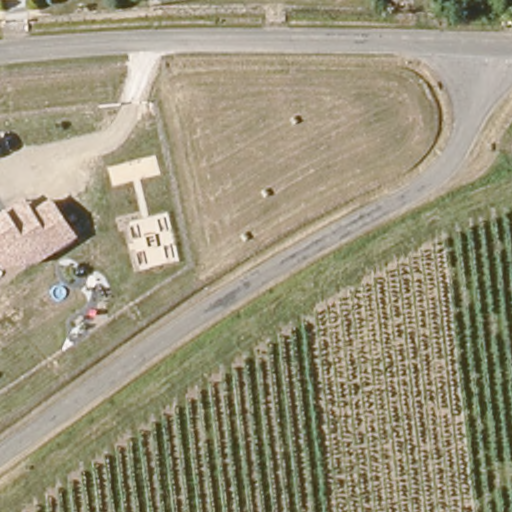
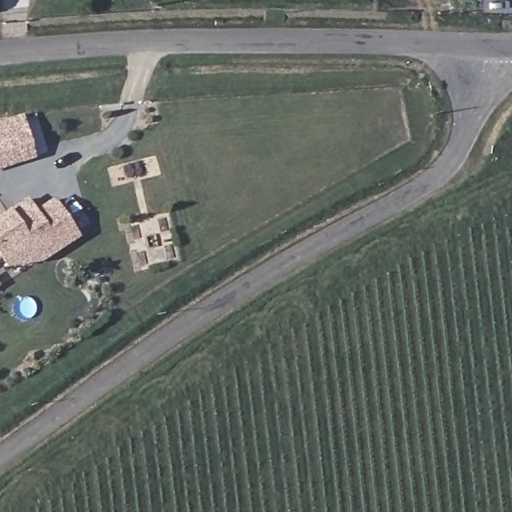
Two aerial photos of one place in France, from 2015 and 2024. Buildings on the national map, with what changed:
new [(20,115),(35,159),(0,170),(0,121),(20,115)]
unchanged [(25,200),(34,210),(50,200),(77,239),(36,264),(4,268),(0,263),(0,216),(25,200)]

